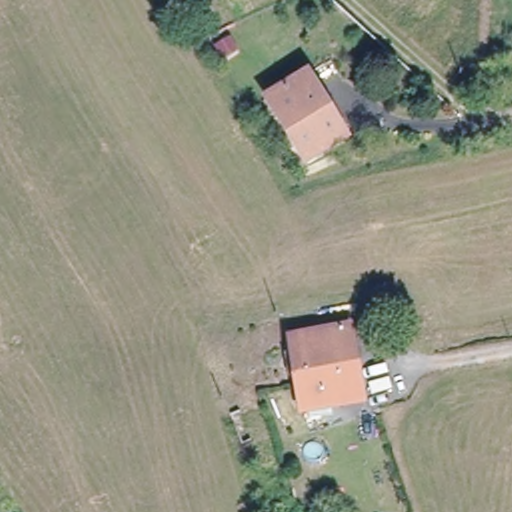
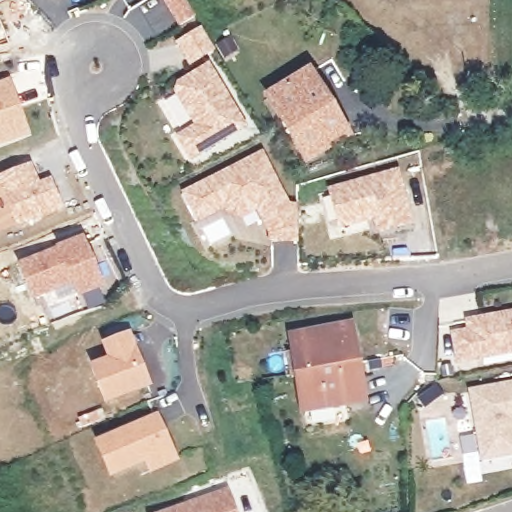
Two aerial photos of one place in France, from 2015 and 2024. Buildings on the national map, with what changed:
new [(176,136),(193,125),(175,95),(177,81),(209,62),(248,127),(191,162),(176,136)]
unchanged [(307,75),(346,137),(305,162),(267,99),(307,75)]
new [(0,146),(0,81),(11,77),(30,136),(0,146)]
new [(297,220),(297,242),(267,245),(266,229),(256,211),(242,219),(231,217),(224,210),(197,223),(180,192),(262,150),(297,220)]
new [(52,177),(64,210),(17,228),(0,188),(0,176),(32,162),(39,182),(52,177)]
new [(415,222),(377,235),(372,220),(339,230),(326,189),(398,167),(415,222)]
new [(102,287),(77,296),(71,281),(32,299),(17,262),(57,247),(84,237),(102,287)]
new [(457,363),(452,331),(466,327),(465,319),(512,310),(512,354),(457,363)]
unchanged [(349,327),(356,362),(297,373),(291,337),(349,327)]
new [(152,385),(107,405),(89,364),(107,357),(102,342),(132,331),(152,385)]
unchanged [(362,400),(303,410),(297,373),(356,362),(362,400)]
demolished [(456,386),(511,377),(512,388),(512,450),(467,456),(457,394),(456,386)]
new [(512,381),(512,456),(482,462),(469,388),(512,381)]
new [(180,458),(151,473),(145,462),(111,480),(93,442),(158,412),(180,458)]
demolished [(0,512),(0,466),(4,465),(20,512),(0,512)]
new [(238,512),(155,512),(228,483),(238,512)]

